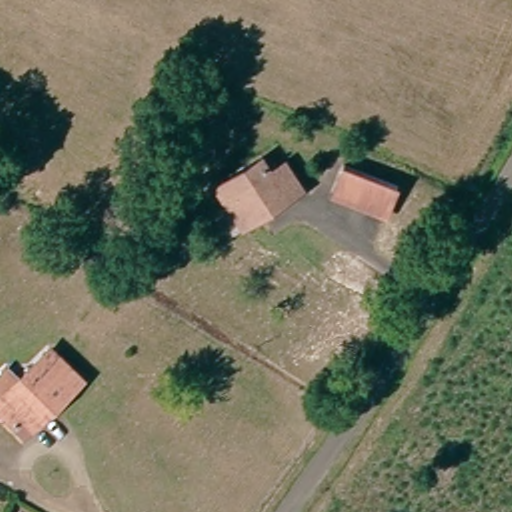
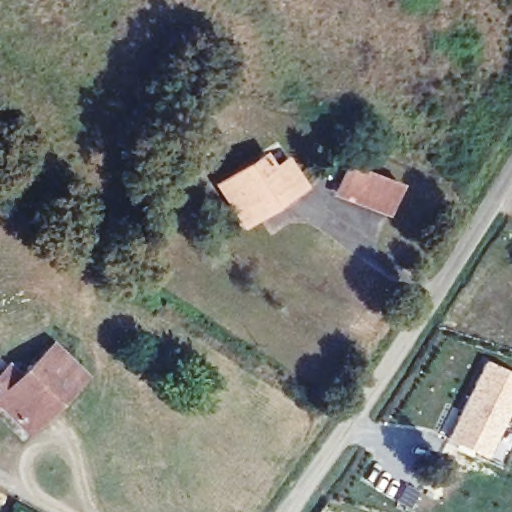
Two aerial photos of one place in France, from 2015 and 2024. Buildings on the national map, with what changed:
unchanged [(307,178),(312,186),(295,198),(288,191),(257,213),(262,220),(252,227),(246,231),(217,187),(264,154),(275,169),(292,157),(307,178)]
unchanged [(402,187),(390,214),(341,194),(352,167),(402,187)]
unchanged [(27,382),(60,349),(91,379),(63,408),(57,402),(28,431),(4,408),(0,411),(0,383),(14,369),(27,382)]
new [(512,405),(487,459),(445,440),(483,361),(512,375),(512,405)]

